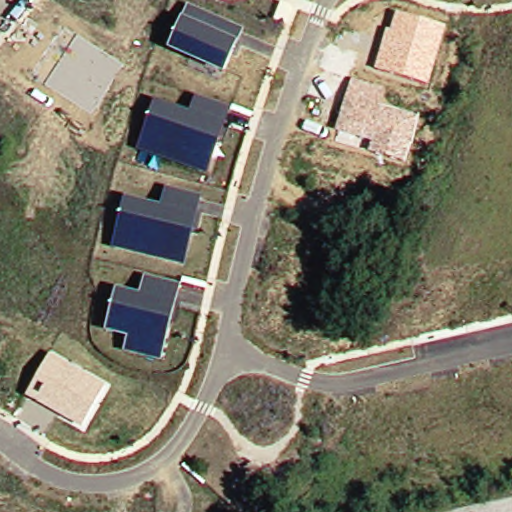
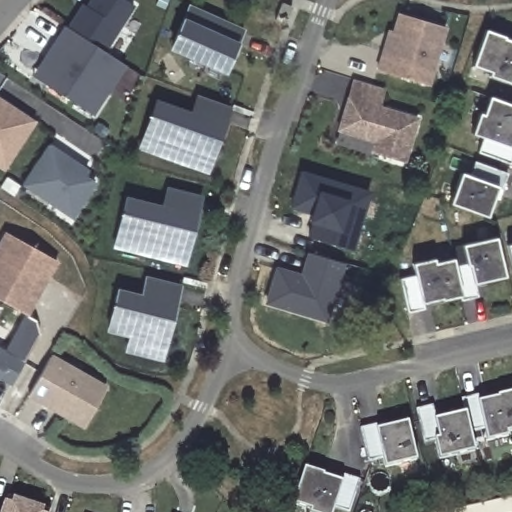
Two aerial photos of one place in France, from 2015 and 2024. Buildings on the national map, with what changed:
new [(82,3),(86,6),(89,0),(124,0),(135,7),(105,51),(66,26),(82,3)]
unchanged [(189,5),(243,29),(224,73),(169,49),(189,5)]
unchanged [(446,28),(428,87),(376,69),(387,29),(392,31),(396,13),(446,28)]
unchanged [(95,116),(32,76),(64,25),(127,65),(95,116)]
new [(505,38),(512,41),(512,73),(509,82),(489,75),(490,72),(472,66),(486,31),(505,37),(505,38)]
unchanged [(383,90),(381,107),(415,117),(403,162),(368,153),(371,143),(336,131),(351,82),(383,90)]
new [(4,171),(0,168),(0,96),(37,121),(4,171)]
new [(155,100),(191,110),(196,96),(229,106),(207,172),(136,150),(155,100)]
new [(512,147),(512,161),(511,164),(480,153),(484,138),(472,135),(480,114),(483,115),(490,97),(512,105),(512,140),(510,146),(512,147)]
new [(62,207),(26,183),(52,145),(84,166),(91,171),(87,177),(96,183),(82,203),(74,215),(62,207)]
new [(502,190),(497,187),(487,217),(451,204),(461,174),(470,177),(476,163),(507,174),(502,190)]
new [(340,244),(310,234),(314,220),(311,219),(313,211),(292,205),(302,170),(370,191),(357,233),(352,247),(340,244)]
unchanged [(124,197),(160,205),(164,187),(200,195),(185,266),(112,247),(124,197)]
new [(58,261),(27,316),(0,300),(0,241),(6,231),(58,261)]
new [(503,276),(476,282),(477,297),(461,300),(460,295),(422,303),(424,309),(407,312),(401,279),(416,277),(413,263),(434,259),(435,263),(453,259),(454,267),(466,265),(462,245),(496,238),(503,276)]
new [(512,244),(512,273),(507,246),(512,244)]
unchanged [(344,263),(327,323),(264,304),(276,266),(302,274),(307,253),(344,263)]
unchanged [(116,290),(141,294),(145,277),(181,285),(162,362),(124,353),(127,337),(106,333),(116,290)]
unchanged [(11,385),(0,379),(0,346),(25,360),(11,385)]
unchanged [(105,387),(82,429),(26,398),(50,356),(105,387)]
new [(508,436),(487,441),(485,428),(470,431),(475,451),(440,458),(436,441),(423,443),(417,409),(433,406),(436,418),(465,412),(463,399),(480,396),(480,402),(497,398),(498,395),(512,393),(512,430),(508,431),(508,436)]
new [(417,460),(386,467),(384,459),(368,462),(361,428),(377,425),(378,429),(408,423),(417,460)]
new [(347,512),(334,508),(333,512),(312,512),(312,510),(294,503),(305,469),(325,475),(324,477),(342,482),(344,476),(360,481),(349,512),(347,512)]
new [(51,509),(50,512),(3,512),(8,495),(51,509)]

